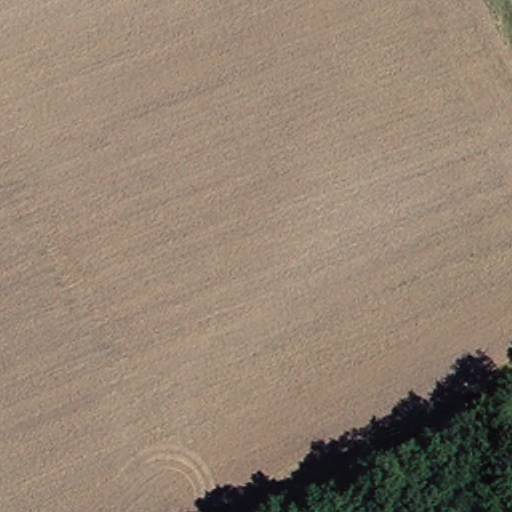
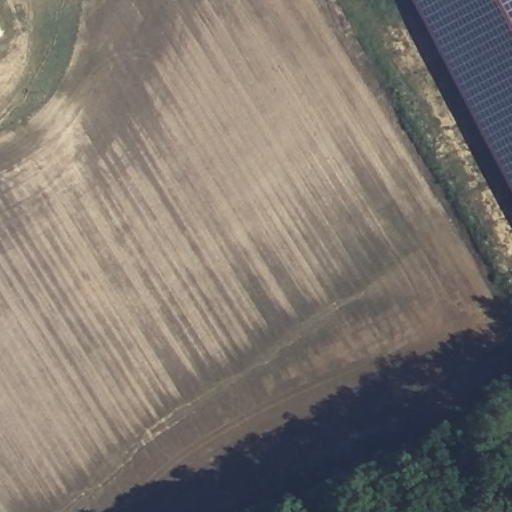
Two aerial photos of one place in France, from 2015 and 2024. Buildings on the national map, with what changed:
new [(512,181),(417,0),(512,0),(512,181)]
new [(2,35),(0,36),(0,29),(2,35)]

